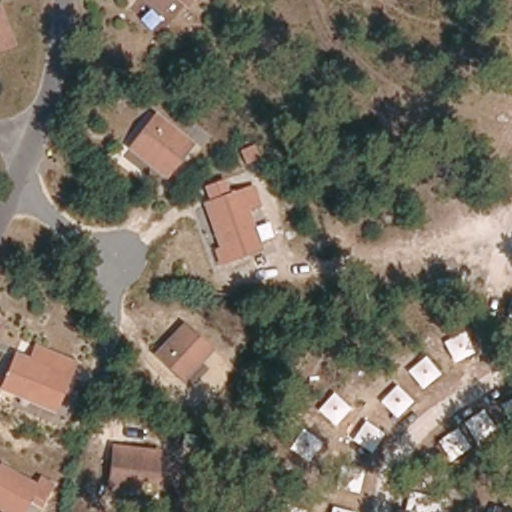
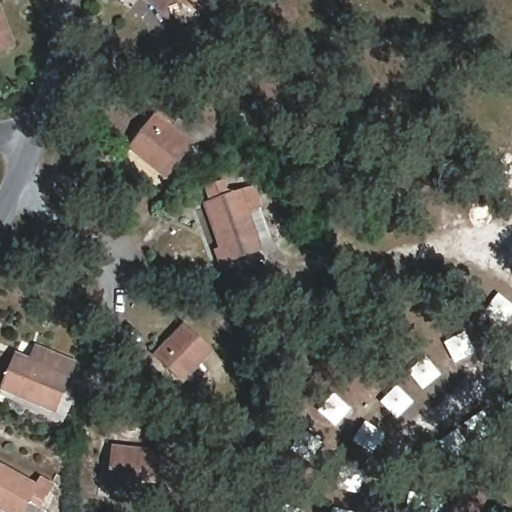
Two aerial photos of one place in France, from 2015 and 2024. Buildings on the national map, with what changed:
unchanged [(161,13),(146,2),(142,0),(170,0),(161,13)]
unchanged [(184,7),(175,0),(190,0),(184,7)]
unchanged [(16,47),(0,53),(0,7),(16,47)]
unchanged [(134,146),(139,139),(157,117),(189,142),(171,166),(167,172),(134,146)]
unchanged [(209,230),(201,209),(248,193),(255,212),(242,216),(257,255),(230,265),(226,254),(219,256),(209,230)]
unchanged [(186,380),(180,375),(158,356),(186,324),(207,343),(213,348),(186,380)]
unchanged [(0,390),(0,389),(15,357),(28,363),(35,348),(45,353),(74,367),(52,415),(38,408),(13,397),(0,390)]
unchanged [(110,490),(111,477),(113,448),(161,452),(158,481),(142,480),(141,492),(110,490)]
unchanged [(33,492),(22,512),(0,512),(0,475),(33,492)]

